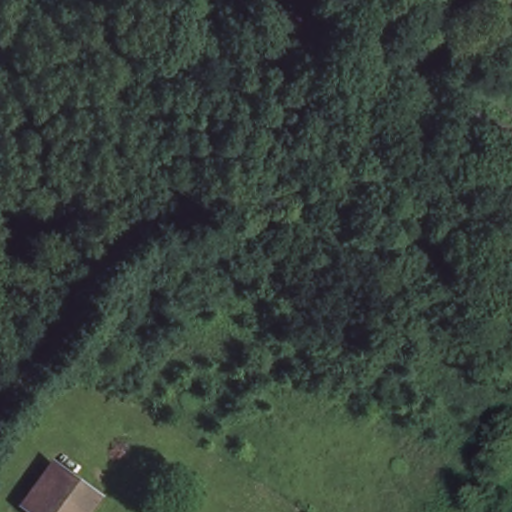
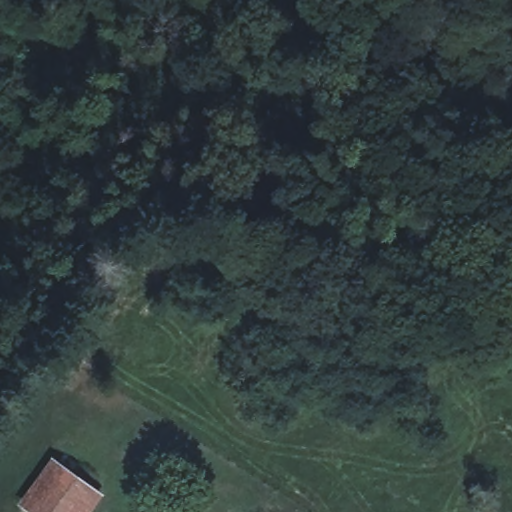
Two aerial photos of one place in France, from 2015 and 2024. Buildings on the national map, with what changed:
unchanged [(23,505),(45,465),(85,488),(93,492),(82,512),(36,512),(23,505)]

